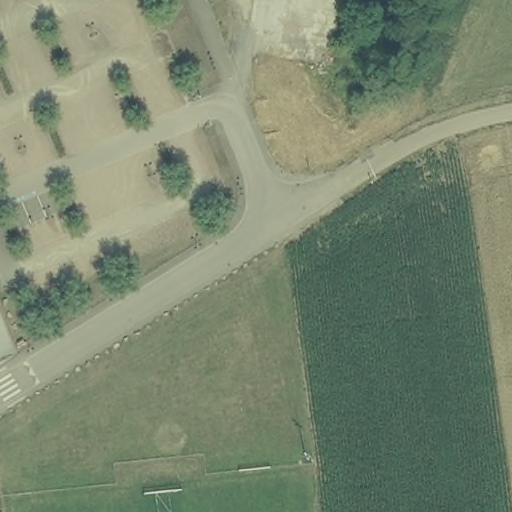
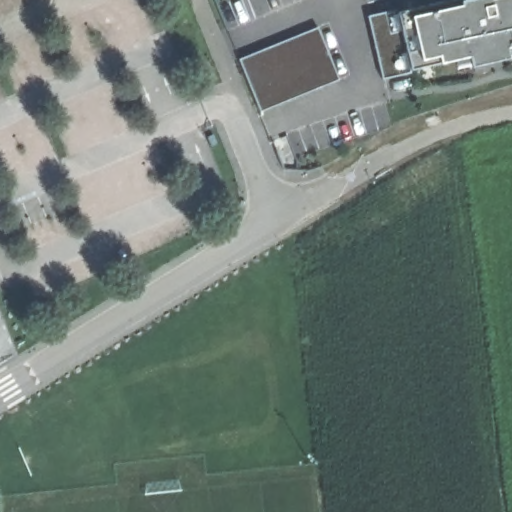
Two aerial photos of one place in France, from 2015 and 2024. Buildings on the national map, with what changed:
new [(512,0),(512,61),(507,62),(505,59),(470,66),(470,71),(455,75),(450,60),(410,70),(410,72),(382,79),(367,16),(453,0),(512,0)]
new [(250,55),(317,27),(338,80),(272,107),(260,112),(238,60),(250,55)]

